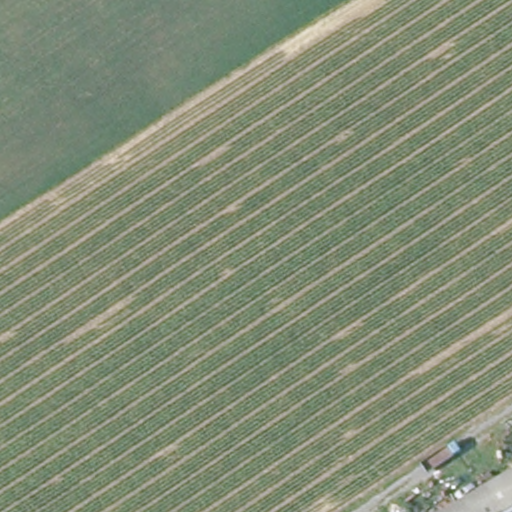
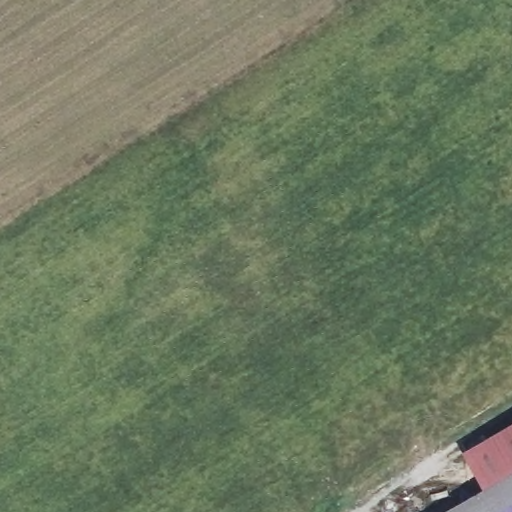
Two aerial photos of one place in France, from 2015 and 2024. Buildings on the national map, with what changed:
new [(512,426),(512,472),(482,488),(463,454),(512,426)]
unchanged [(512,472),(512,512),(438,512),(482,488),(512,472)]

